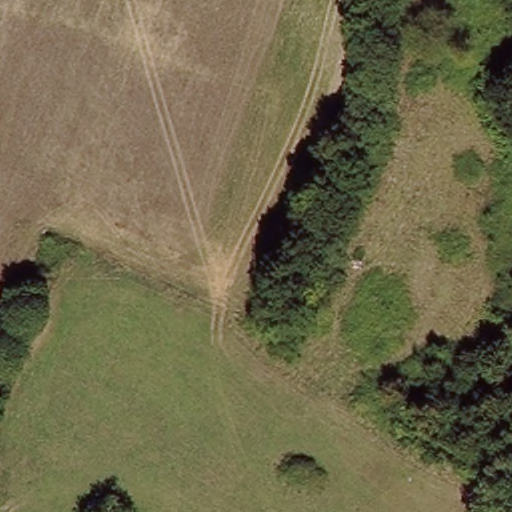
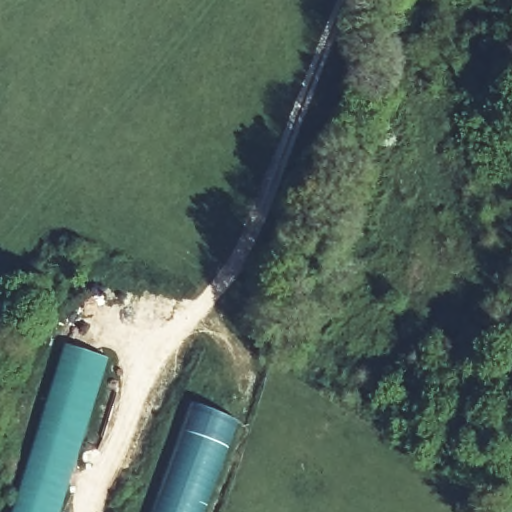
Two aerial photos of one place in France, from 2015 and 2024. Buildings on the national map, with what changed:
new [(108,359),(62,512),(17,512),(67,346),(108,359)]
new [(240,423),(208,512),(156,512),(196,405),(240,423)]

